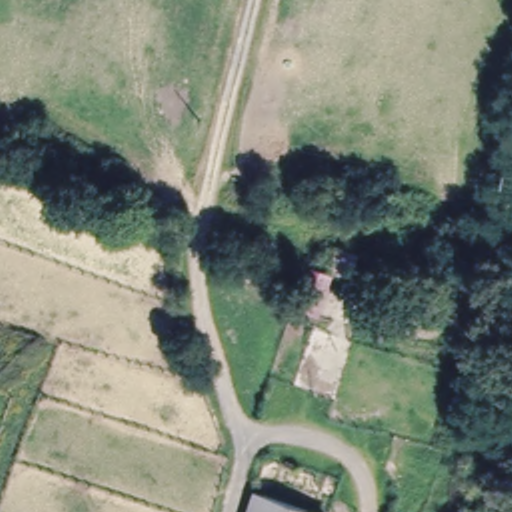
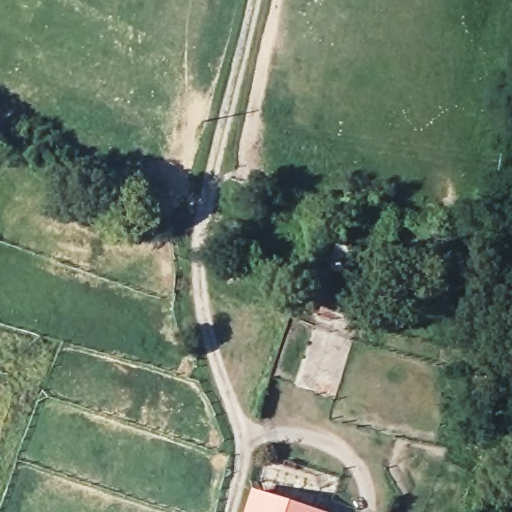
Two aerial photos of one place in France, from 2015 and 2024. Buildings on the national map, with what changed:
unchanged [(332,272),(300,383),(268,374),(300,262),(332,272)]
unchanged [(252,488),(331,511),(330,512),(245,512),(252,488)]

